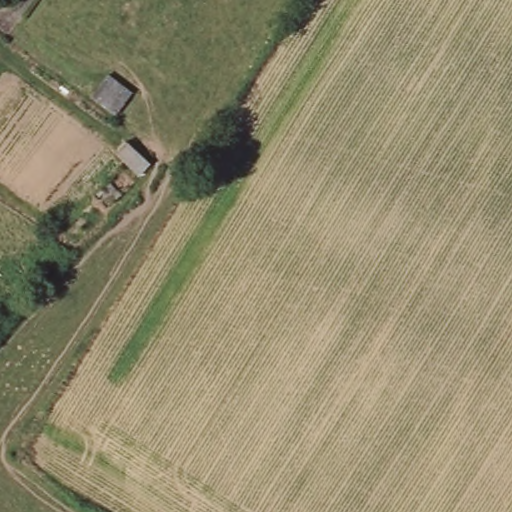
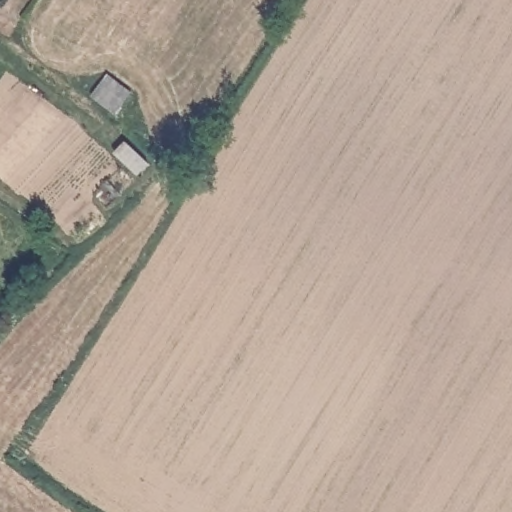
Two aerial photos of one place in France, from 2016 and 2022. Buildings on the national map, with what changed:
unchanged [(139,91),(124,113),(103,98),(119,76),(139,91)]
unchanged [(161,156),(153,168),(124,147),(133,135),(161,156)]

